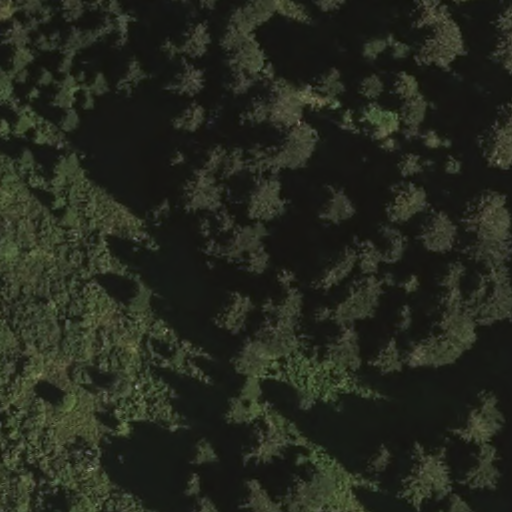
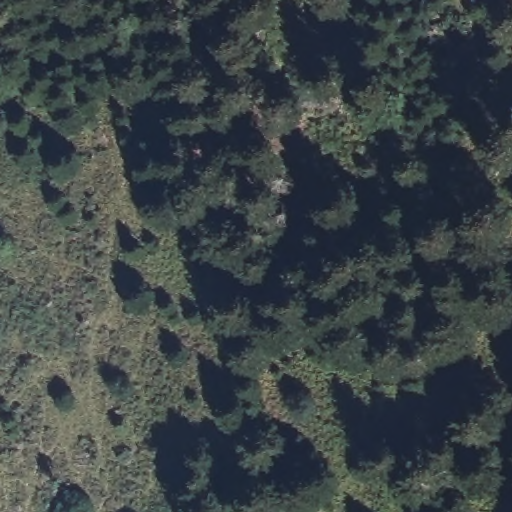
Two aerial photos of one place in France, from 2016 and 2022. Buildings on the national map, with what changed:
[]

